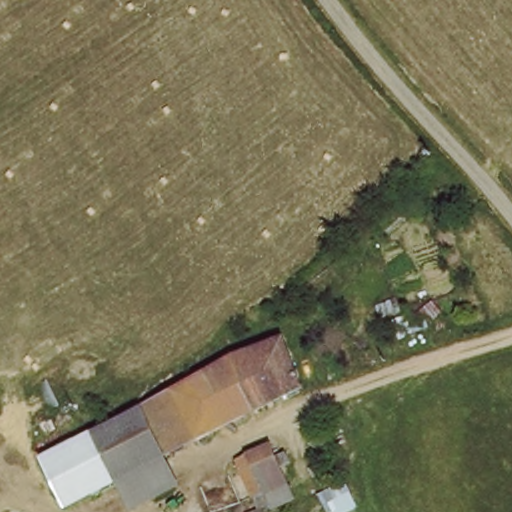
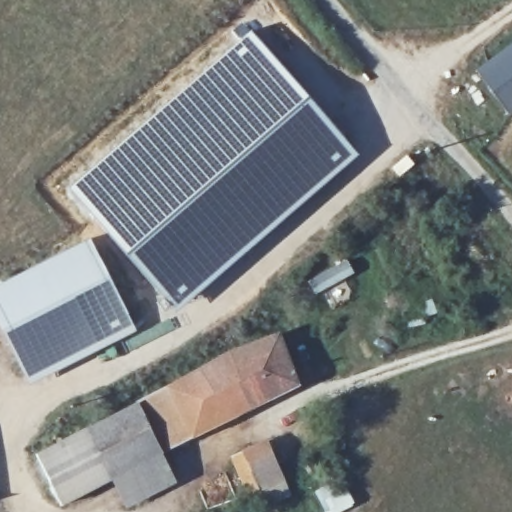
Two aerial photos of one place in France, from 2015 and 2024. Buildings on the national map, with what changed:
new [(250,29),(358,155),(176,312),(66,188),(250,29)]
new [(475,71),(512,44),(512,113),(509,115),(475,71)]
new [(125,314),(18,369),(0,333),(0,285),(88,240),(125,314)]
new [(345,258),(354,273),(313,295),(305,280),(345,258)]
unchanged [(168,447),(145,398),(229,350),(281,330),(300,385),(168,447)]
unchanged [(88,426),(138,401),(177,478),(129,503),(114,476),(88,426)]
unchanged [(65,438),(88,426),(114,476),(90,487),(65,438)]
unchanged [(254,491),(250,493),(233,453),(269,436),(274,450),(284,445),(289,455),(280,460),(287,476),(293,491),(260,505),(254,491)]
unchanged [(72,496),(48,447),(65,438),(90,487),(72,496)]
unchanged [(342,512),(321,512),(312,495),(334,483),(348,508),(342,512)]

